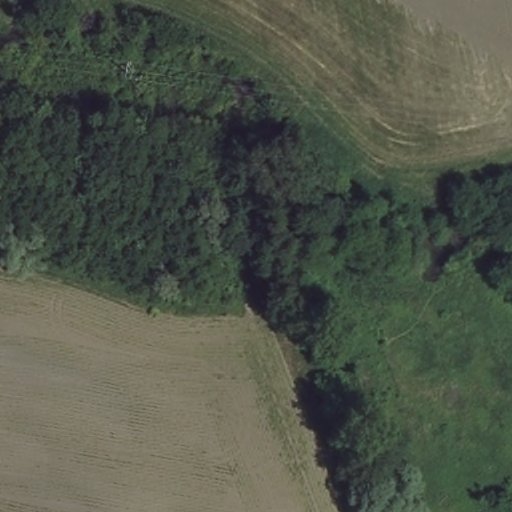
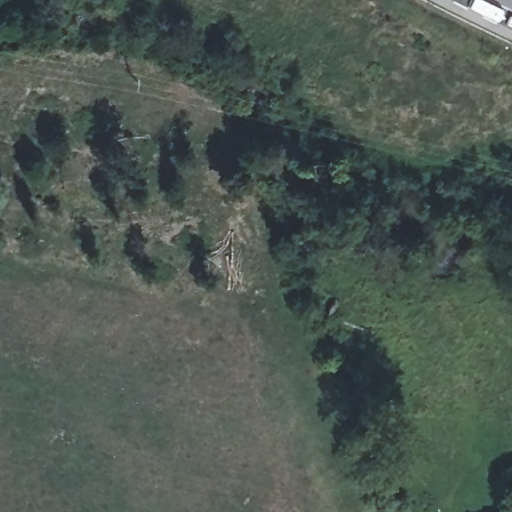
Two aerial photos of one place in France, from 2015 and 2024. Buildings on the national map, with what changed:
unchanged [(402,503),(430,500),(433,512),(404,512),(402,503)]

